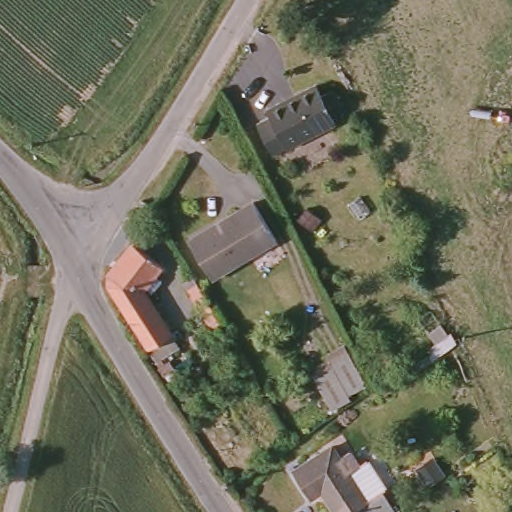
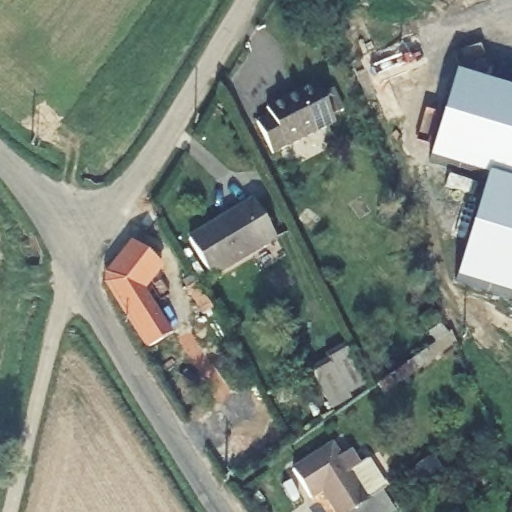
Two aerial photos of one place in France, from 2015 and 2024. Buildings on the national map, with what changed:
new [(455,282),(487,177),(428,160),(457,74),(512,90),(512,299),(455,282)]
unchanged [(253,129),(270,122),(265,113),(315,90),(333,131),(267,162),(253,129)]
unchanged [(187,240),(250,205),(270,244),(208,278),(187,240)]
unchanged [(164,266),(145,295),(176,350),(157,361),(152,364),(112,297),(115,274),(135,249),(164,266)]
unchanged [(212,309),(204,314),(187,285),(195,280),(212,309)]
unchanged [(322,359),(319,352),(332,345),(352,381),(338,390),(342,396),(324,407),(306,369),(322,359)]
unchanged [(299,483),(333,460),(347,480),(360,471),(387,512),(334,512),(330,506),(318,512),(299,483)]

